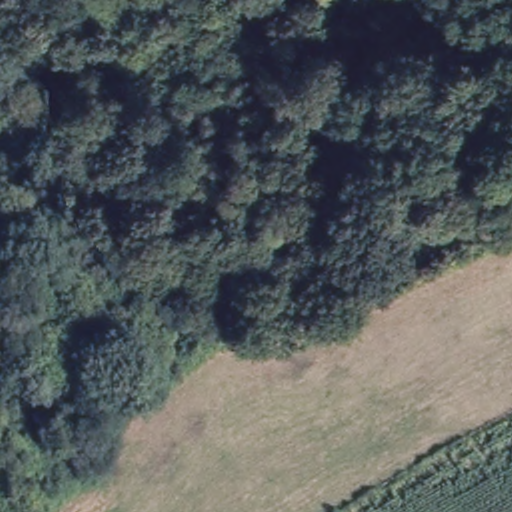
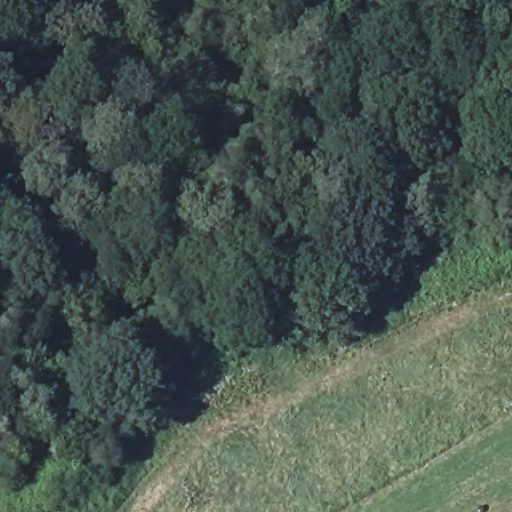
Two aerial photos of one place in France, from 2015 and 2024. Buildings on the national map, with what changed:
[]

